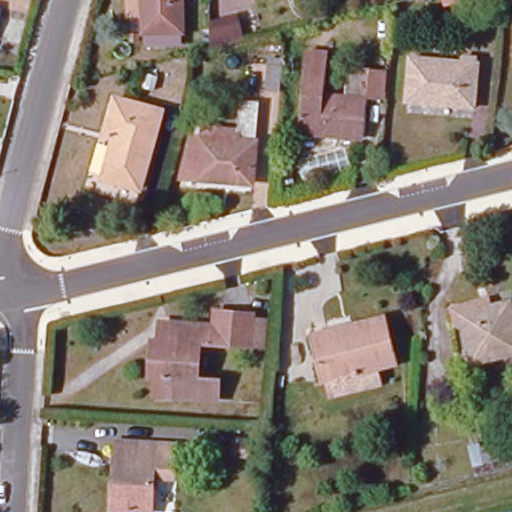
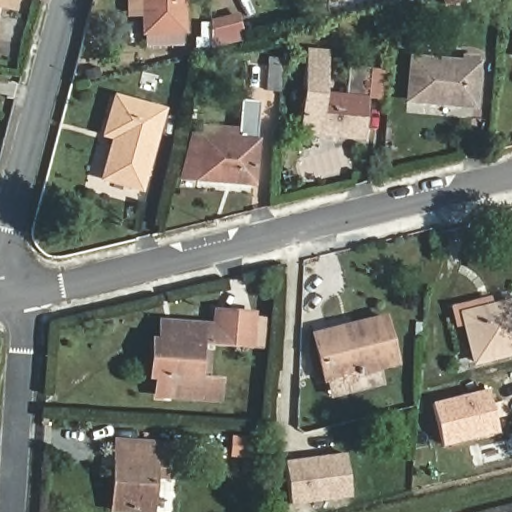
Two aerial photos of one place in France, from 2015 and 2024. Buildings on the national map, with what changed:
unchanged [(139,34),(139,0),(178,0),(178,34),(139,34)]
unchanged [(460,61),(459,55),(478,57),(475,104),(405,98),(407,58),(460,61)]
unchanged [(294,137),(298,69),(300,57),(320,58),(319,71),(317,100),(344,102),(346,74),(368,76),(388,78),(386,99),(365,98),(362,143),(294,137)]
unchanged [(241,141),(243,100),(260,101),(256,184),(185,179),(195,138),(241,141)]
unchanged [(155,117),(138,194),(101,187),(109,146),(101,144),(108,106),(155,117)]
unchanged [(512,322),(512,357),(470,369),(460,318),(508,307),(512,322)]
unchanged [(153,382),(143,382),(148,339),(155,340),(159,320),(209,324),(213,308),(270,315),(265,351),(203,345),(200,376),(220,379),(218,404),(151,402),(153,382)]
unchanged [(325,396),(322,379),(321,379),(310,335),(380,319),(391,363),(375,368),(379,382),(325,396)]
new [(487,393),(498,433),(443,447),(433,406),(487,393)]
unchanged [(505,436),(508,459),(474,469),(467,445),(505,436)]
unchanged [(175,446),(174,477),(150,476),(148,512),(128,512),(108,511),(109,488),(115,488),(118,453),(112,453),(113,442),(175,446)]
new [(296,462),(301,464),(307,464),(307,460),(344,454),(345,497),(285,506),(280,464),(296,462)]

